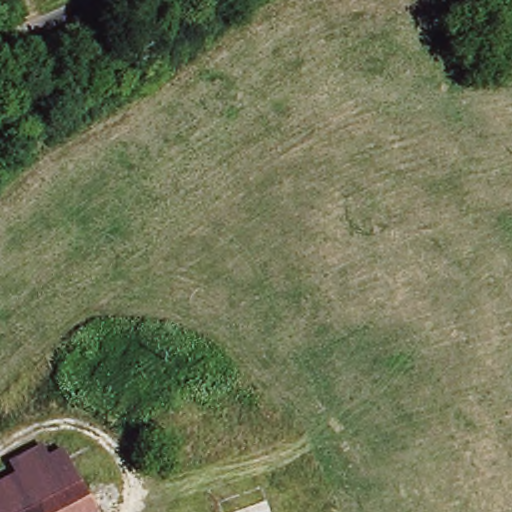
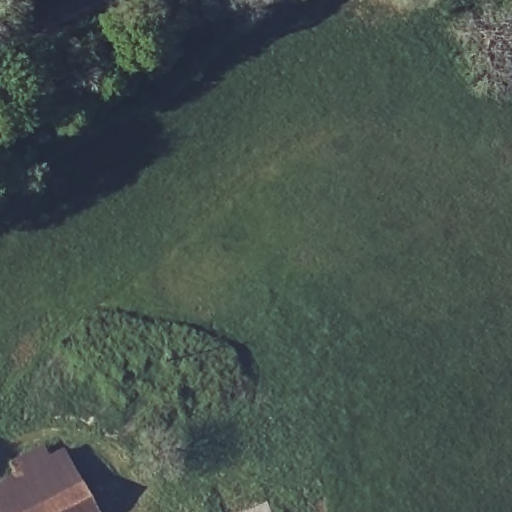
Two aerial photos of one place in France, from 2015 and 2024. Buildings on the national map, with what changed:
unchanged [(0,512),(0,487),(18,477),(12,462),(41,448),(49,461),(60,456),(89,512),(0,512)]

